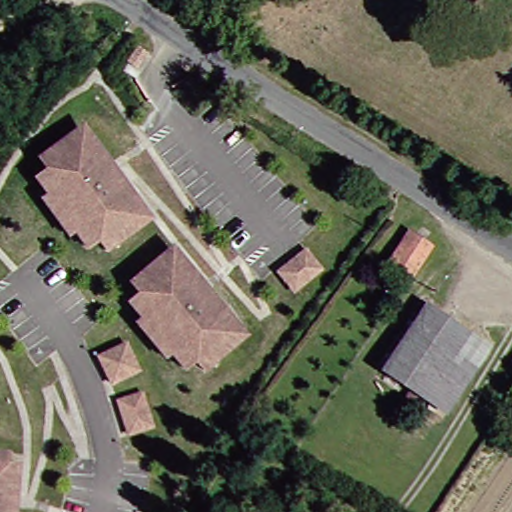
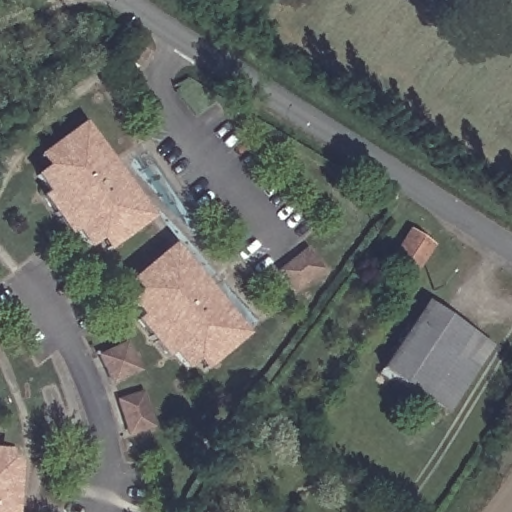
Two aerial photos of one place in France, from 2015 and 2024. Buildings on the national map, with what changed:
unchanged [(149,43),(140,58),(129,51),(140,36),(149,43)]
unchanged [(89,137),(95,134),(142,205),(139,207),(147,221),(112,244),(105,230),(85,245),(37,171),(57,157),(48,147),(82,124),(89,137)]
unchanged [(436,242),(415,270),(390,255),(407,227),(436,242)]
unchanged [(250,330),(207,366),(197,357),(187,364),(175,351),(164,356),(135,320),(144,314),(131,299),(141,293),(130,279),(172,242),(250,330)]
unchanged [(322,269),(292,291),(277,270),(306,249),(322,269)]
unchanged [(426,398),(382,368),(420,311),(415,305),(418,300),(467,332),(426,398)]
unchanged [(490,346),(446,409),(426,398),(467,332),(490,346)]
unchanged [(141,367),(114,379),(100,353),(127,339),(141,367)]
unchanged [(152,423),(127,430),(116,397),(140,389),(152,423)]
unchanged [(19,472),(16,512),(0,512),(0,461),(3,462),(4,472),(19,472)]

